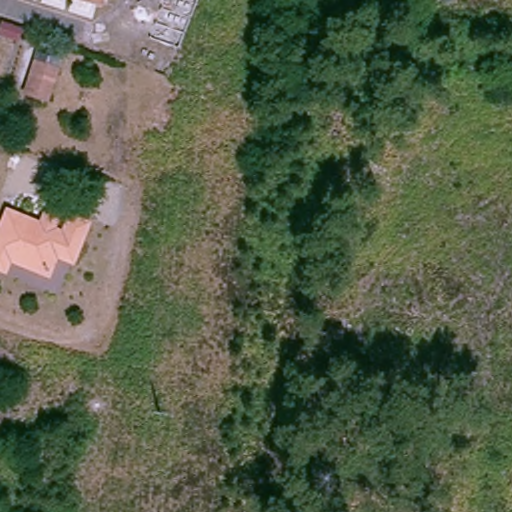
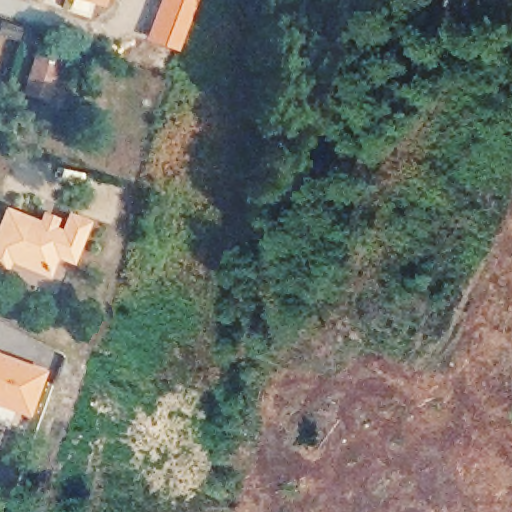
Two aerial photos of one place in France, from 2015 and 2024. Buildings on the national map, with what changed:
new [(144,38),(159,0),(198,0),(178,51),(144,38)]
unchanged [(50,101),(48,107),(18,100),(23,70),(26,52),(54,60),(52,77),(50,101)]
unchanged [(37,220),(40,211),(56,219),(53,230),(60,232),(69,212),(91,224),(73,269),(54,260),(47,278),(9,260),(5,274),(0,271),(0,217),(4,206),(37,220)]
new [(46,370),(29,416),(0,406),(0,353),(46,370)]

